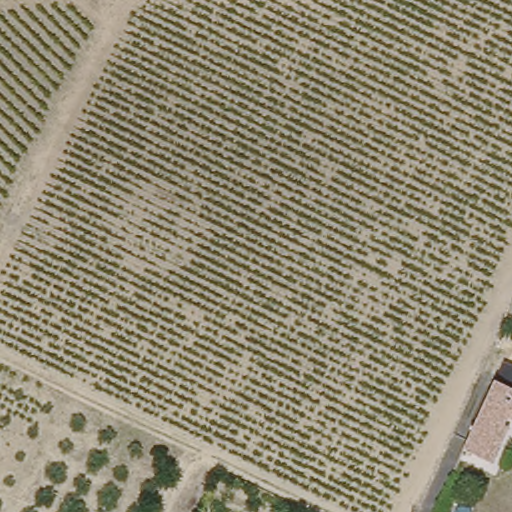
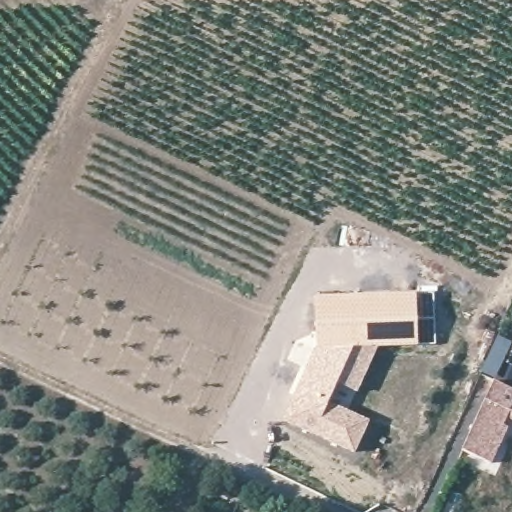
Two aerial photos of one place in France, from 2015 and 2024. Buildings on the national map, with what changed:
new [(284,421),(318,350),(317,297),(417,292),(421,346),(380,349),(359,392),(340,384),(330,403),(372,422),(355,455),(284,421)]
unchanged [(465,445),(496,373),(512,381),(512,416),(493,457),(465,445)]

